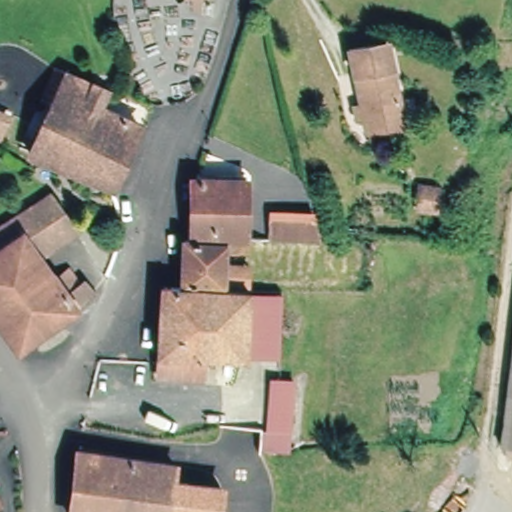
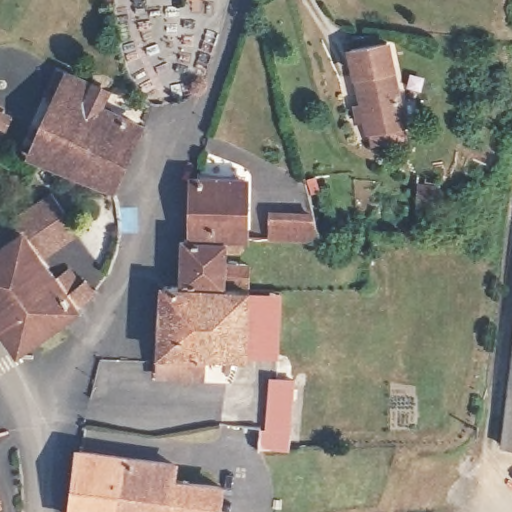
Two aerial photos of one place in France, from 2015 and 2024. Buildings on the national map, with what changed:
unchanged [(404,142),(369,150),(352,69),(387,62),(404,142)]
unchanged [(65,66),(111,85),(101,107),(54,87),(65,66)]
unchanged [(36,156),(46,130),(55,106),(48,103),(54,87),(144,125),(115,193),(36,156)]
unchanged [(1,143),(0,143),(0,110),(13,115),(1,143)]
unchanged [(184,181),(209,181),(235,180),(235,238),(219,239),(184,238),(184,181)]
unchanged [(0,234),(0,227),(49,188),(62,206),(19,238),(9,246),(0,234)]
unchanged [(79,231),(36,263),(19,238),(62,206),(79,231)]
unchanged [(259,246),(259,221),(283,221),(304,220),(311,244),(284,245),(264,246),(259,246)]
unchanged [(36,263),(43,274),(54,266),(65,282),(72,278),(85,298),(70,310),(9,358),(0,342),(0,252),(9,246),(19,238),(36,263)]
unchanged [(174,286),(174,248),(212,247),(219,247),(222,247),(222,269),(213,270),(212,285),(174,286)]
unchanged [(247,291),(275,290),(277,357),(246,358),(247,291)]
unchanged [(153,381),(153,360),(150,350),(152,294),(213,292),(247,291),(246,358),(197,359),(198,381),(153,381)]
unchanged [(508,388),(512,354),(512,389),(508,388)]
unchanged [(270,366),(294,366),(294,432),(269,433),(270,366)]
unchanged [(500,447),(508,388),(512,389),(512,449),(500,447)]
unchanged [(169,455),(168,470),(223,477),(220,509),(220,512),(67,512),(73,446),(169,455)]

